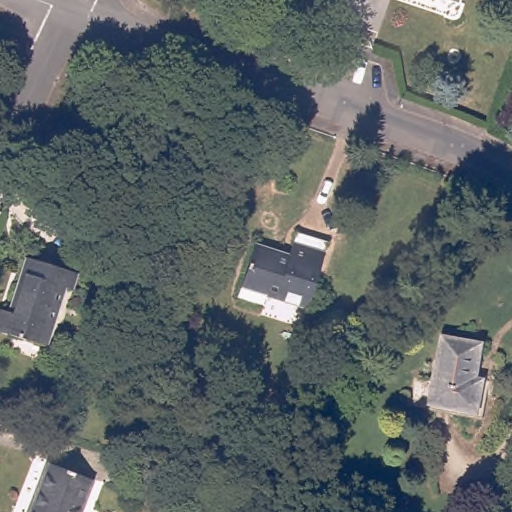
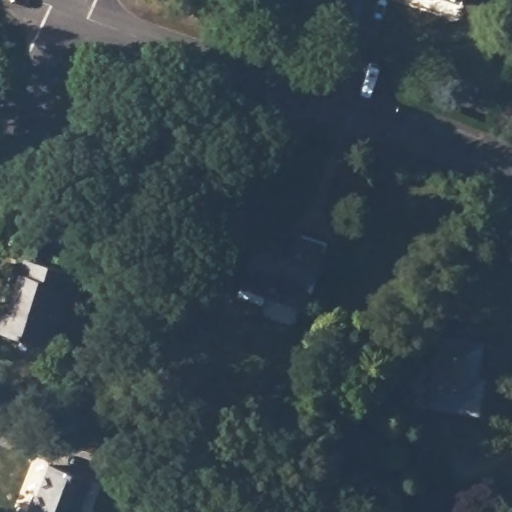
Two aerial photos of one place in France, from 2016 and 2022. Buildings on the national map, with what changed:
unchanged [(452,0),(463,0),(461,4),(452,0)]
unchanged [(238,297),(241,287),(254,244),(280,252),(289,255),(296,234),(326,243),(306,308),(265,295),(262,305),(238,297)]
unchanged [(0,310),(8,313),(25,260),(68,273),(75,275),(70,290),(63,288),(56,312),(45,345),(0,332),(0,310)]
unchanged [(429,406),(442,336),(482,343),(476,377),(485,379),(478,415),(429,406)]
unchanged [(47,465),(92,482),(80,512),(29,512),(47,465)]

